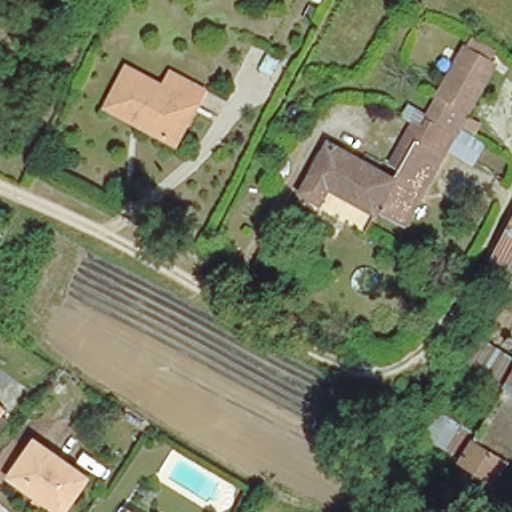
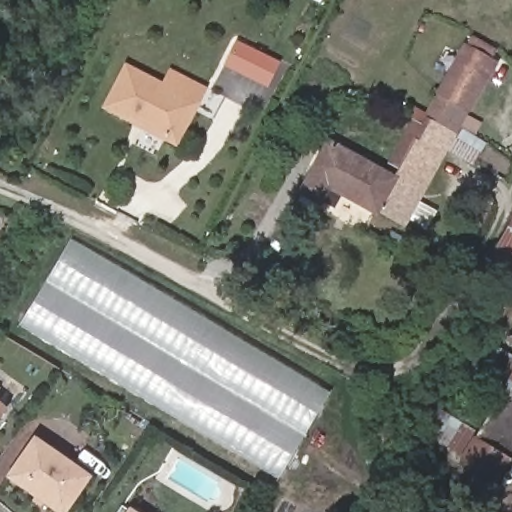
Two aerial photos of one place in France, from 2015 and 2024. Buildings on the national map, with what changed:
unchanged [(384,173),(412,121),(422,125),(464,46),(471,50),(476,39),(492,48),(487,59),(493,63),(467,111),(465,110),(444,149),(405,223),(378,208),(376,212),(329,185),(320,202),(301,192),(328,141),(384,173)]
unchanged [(107,105),(126,69),(163,87),(171,72),(202,89),(194,104),(175,142),(107,105)]
unchanged [(465,110),(467,111),(484,119),(479,130),(490,136),(476,165),(444,149),(465,110)]
unchanged [(493,258),(512,224),(512,268),(493,258)]
new [(278,478),(19,325),(71,240),(329,393),(278,478)]
unchanged [(484,431),(511,387),(465,359),(481,334),(512,353),(512,456),(500,474),(425,427),(439,403),(484,431)]
unchanged [(0,414),(0,411),(1,412),(0,414)]
unchanged [(65,512),(63,512),(11,475),(35,439),(88,476),(65,512)]
unchanged [(126,512),(130,506),(139,512),(126,512)]

